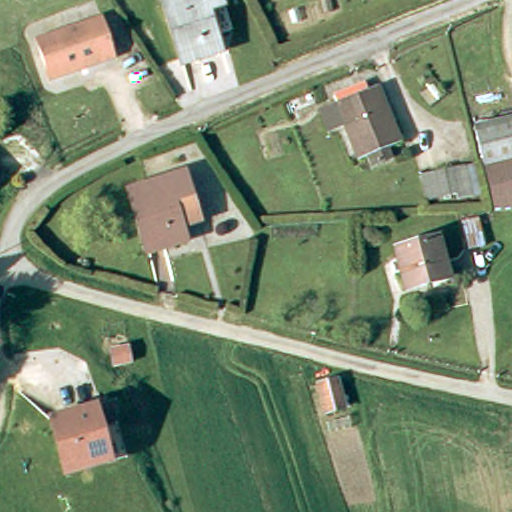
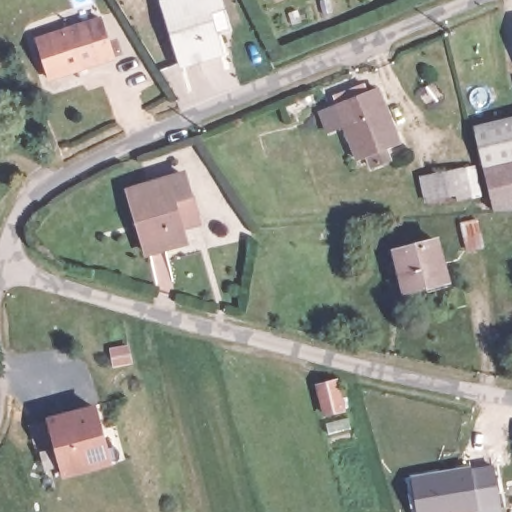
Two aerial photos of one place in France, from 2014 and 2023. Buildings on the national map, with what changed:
unchanged [(205,2),(216,46),(176,55),(161,0),(213,0),(205,2)]
unchanged [(29,40),(93,20),(104,59),(41,79),(29,40)]
unchanged [(370,72),(372,80),(379,77),(400,132),(386,138),(390,149),(374,155),(370,144),(358,147),(347,116),(331,122),(322,100),(338,95),(334,85),(370,72)]
unchanged [(512,115),(512,136),(474,147),(473,125),(512,115)]
unchanged [(512,136),(512,181),(486,189),(474,147),(512,136)]
unchanged [(449,186),(419,190),(416,165),(460,159),(465,190),(449,191),(449,186)]
unchanged [(122,185),(177,166),(184,185),(167,190),(180,234),(142,246),(122,185)]
unchanged [(486,189),(512,181),(512,208),(493,209),(486,189)]
unchanged [(408,280),(397,241),(438,230),(449,267),(408,280)]
unchanged [(326,380),(345,375),(352,401),(333,406),(326,380)]
unchanged [(112,455),(71,466),(56,410),(102,398),(108,421),(117,455),(112,455)]
new [(479,512),(417,512),(411,475),(471,465),(479,512)]

